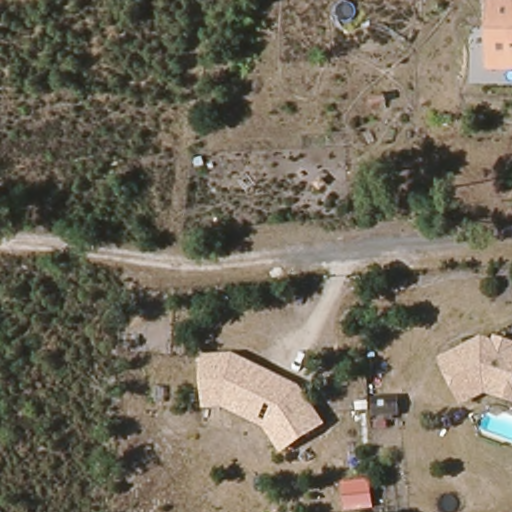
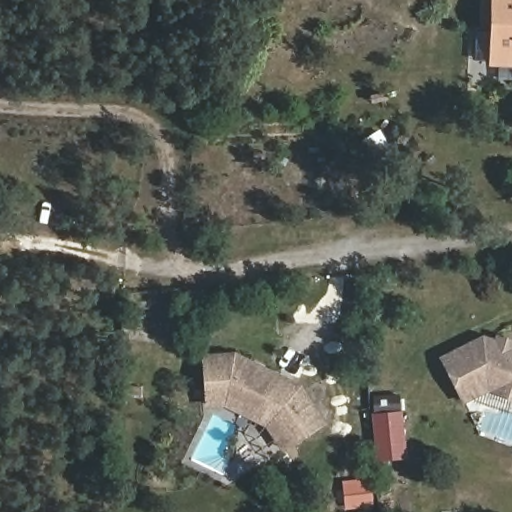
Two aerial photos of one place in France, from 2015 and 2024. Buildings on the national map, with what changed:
unchanged [(490,60),(493,0),(512,0),(512,61),(490,60)]
unchanged [(482,385),(456,393),(442,347),(485,333),(512,346),(512,399),(482,385)]
unchanged [(283,453),(263,426),(223,407),(205,409),(200,356),(234,353),(303,386),(327,423),(283,453)]
new [(406,460),(376,462),(372,413),(402,411),(406,460)]

